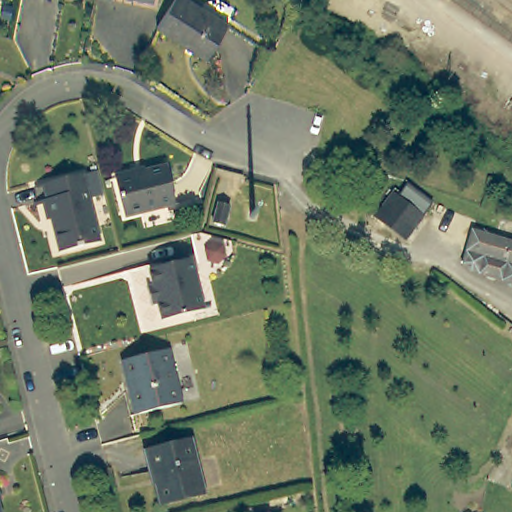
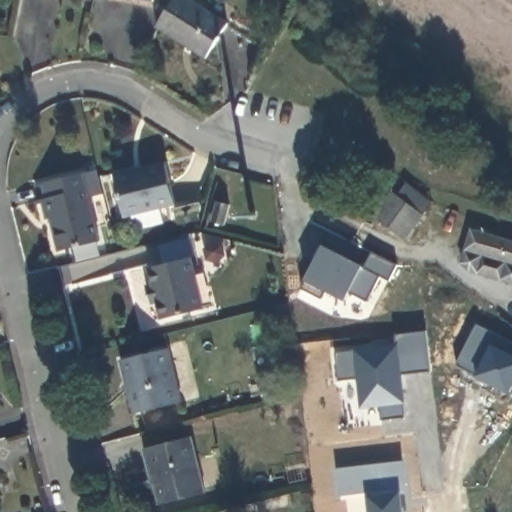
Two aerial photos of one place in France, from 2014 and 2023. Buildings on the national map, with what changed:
unchanged [(212,58),(163,28),(161,26),(176,0),(192,0),(232,23),(212,58)]
unchanged [(134,166),(135,169),(166,160),(176,199),(125,212),(115,172),(134,166)]
unchanged [(92,166),(94,175),(97,190),(84,194),(95,238),(55,248),(47,214),(44,214),(40,195),(42,195),(39,179),(78,169),(92,166)]
unchanged [(404,238),(372,213),(375,210),(392,189),(422,214),(407,233),(404,238)]
unchanged [(469,225),(512,238),(512,281),(472,269),(460,260),(469,225)]
new [(388,279),(380,274),(367,299),(348,289),(344,297),(326,287),(321,295),(301,285),(315,259),(310,256),(318,240),(363,264),(372,249),(397,262),(388,279)]
unchanged [(147,284),(154,282),(150,264),(191,254),(202,305),(162,314),(158,298),(150,300),(147,284)]
new [(431,359),(400,363),(404,405),(380,408),(378,393),(361,394),(359,377),(339,379),(336,349),(397,344),(396,332),(427,329),(431,359)]
unchanged [(122,379),(125,378),(120,358),(167,346),(181,399),(140,409),(130,411),(122,379)]
new [(400,363),(403,362),(405,380),(402,381),(400,363)]
unchanged [(152,471),(149,472),(142,446),(191,434),(205,489),(159,502),(152,471)]
new [(370,492),(342,495),(338,469),(403,461),(407,492),(402,493),(404,512),(372,512),(370,492)]

